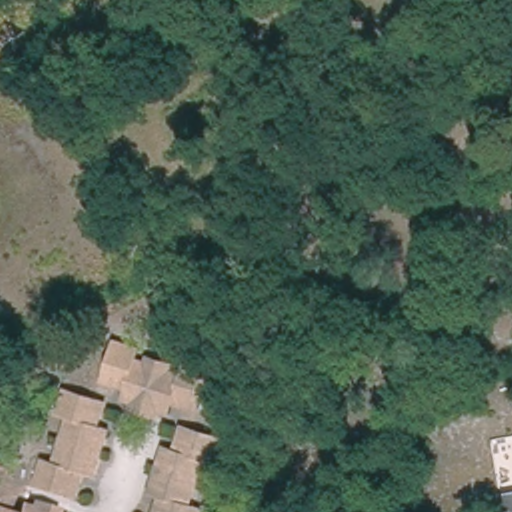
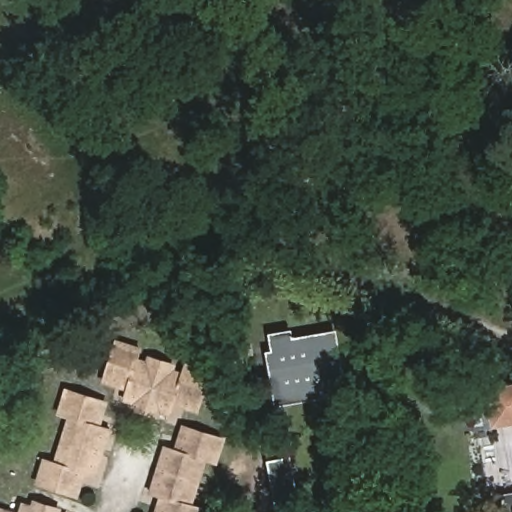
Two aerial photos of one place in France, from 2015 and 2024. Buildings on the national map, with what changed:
new [(331,382),(334,397),(275,406),(266,353),(272,352),(269,334),(292,330),(294,338),(337,331),(345,379),(331,382)]
unchanged [(129,402),(123,399),(125,389),(101,382),(112,343),(122,347),(135,350),(132,360),(142,364),(145,358),(157,363),(170,367),(169,372),(179,376),(184,364),(195,368),(205,372),(192,410),(170,402),(166,414),(156,409),(154,416),(127,407),(129,402)]
new [(512,385),(512,425),(490,429),(485,389),(512,385)]
unchanged [(55,466),(60,451),(62,439),(66,429),(70,417),(60,414),(63,403),(66,392),(105,404),(99,428),(109,432),(96,474),(85,471),(78,494),(39,482),(42,473),(45,462),(55,466)]
unchanged [(163,496),(152,492),(165,449),(176,453),(184,429),(223,442),(220,452),(216,462),(205,458),(201,471),(197,483),(194,494),(190,505),(202,509),(202,512),(158,512),(163,496)]
new [(291,462),(299,502),(277,506),(270,465),(291,462)]
new [(512,493),(512,512),(508,512),(505,494),(512,493)]
unchanged [(22,504),(33,508),(35,501),(60,509),(59,512),(20,512),(22,504)]
unchanged [(0,508),(11,512),(0,512),(0,508)]

